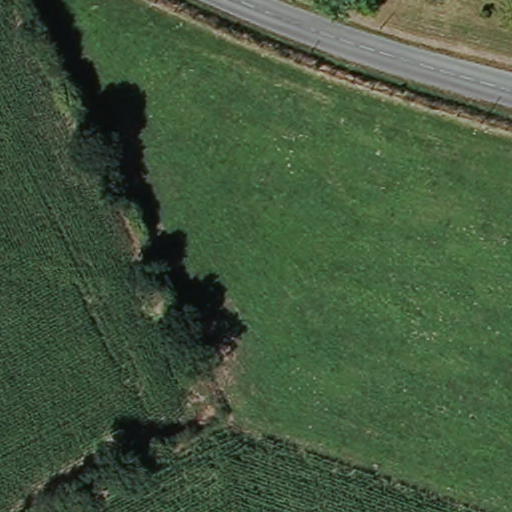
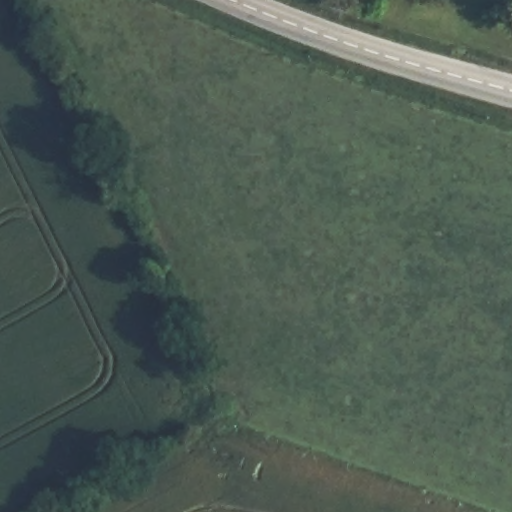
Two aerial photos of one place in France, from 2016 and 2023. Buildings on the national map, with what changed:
[]

